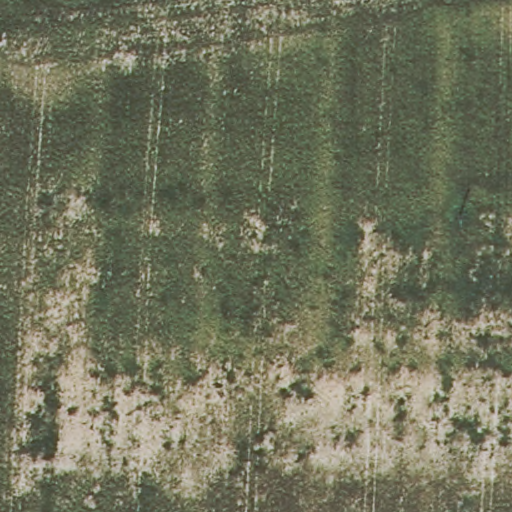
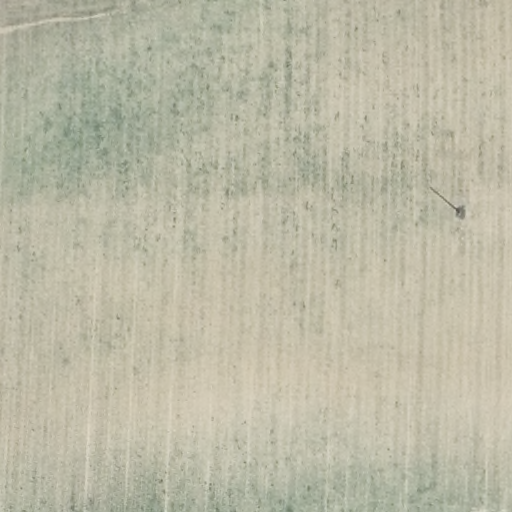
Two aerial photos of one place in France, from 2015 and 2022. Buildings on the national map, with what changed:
[]

